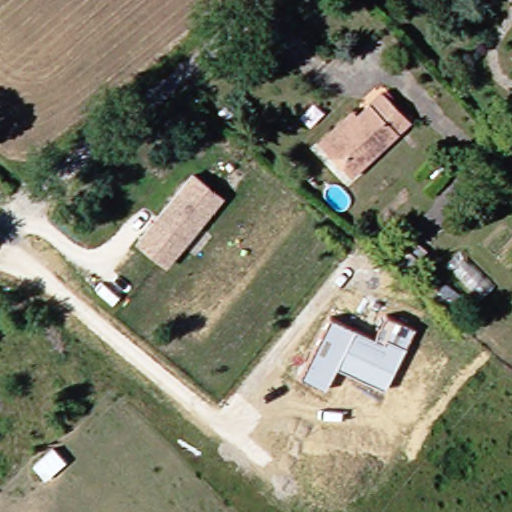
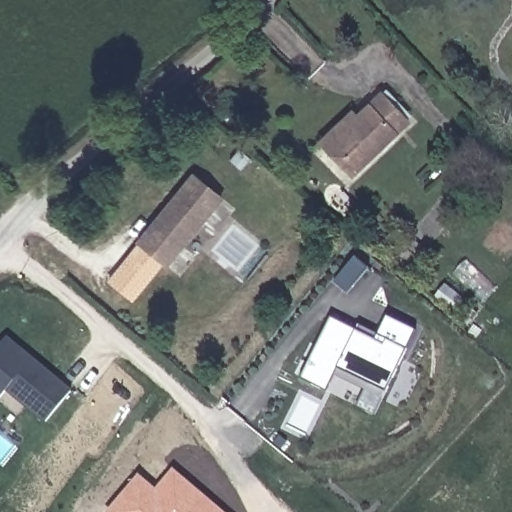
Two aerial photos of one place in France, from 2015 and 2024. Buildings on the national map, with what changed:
unchanged [(412,124),(357,178),(329,148),(322,140),(353,111),(359,119),(384,94),(412,124)]
unchanged [(220,195),(166,264),(138,241),(192,172),(220,195)]
unchanged [(386,390),(337,366),(325,387),(301,375),(331,317),(376,337),(388,313),(417,328),(386,390)]
new [(0,342),(4,336),(71,389),(46,420),(7,389),(0,398),(0,342)]
new [(139,474),(156,488),(174,468),(224,512),(108,512),(139,474)]

